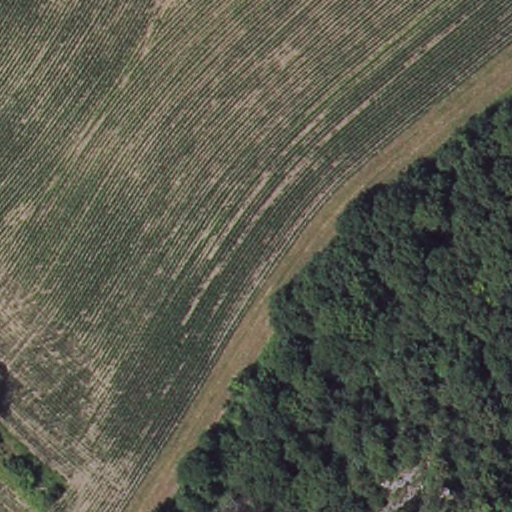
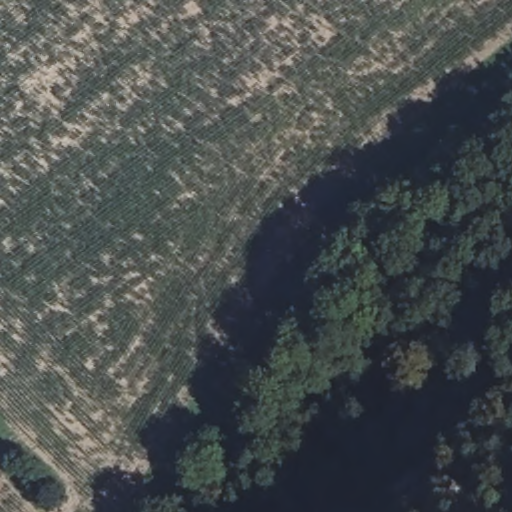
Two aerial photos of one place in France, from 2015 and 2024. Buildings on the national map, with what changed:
[]

